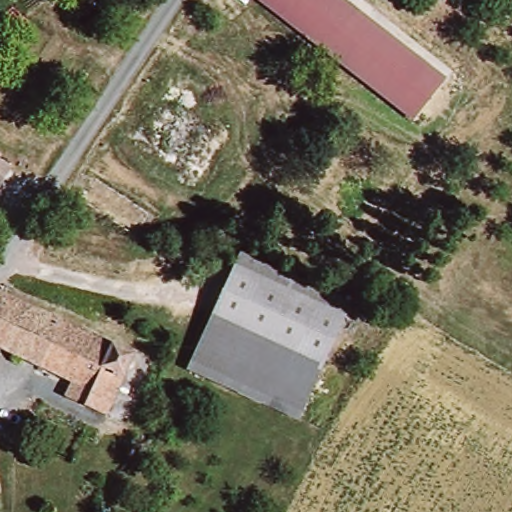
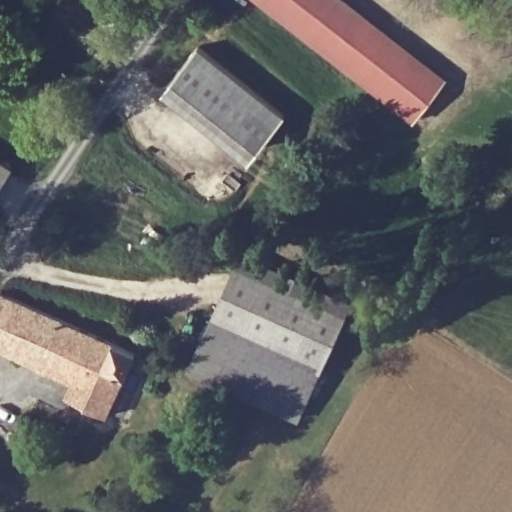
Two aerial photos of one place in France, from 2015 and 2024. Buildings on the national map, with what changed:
unchanged [(443,81),(412,118),(267,0),(343,0),(443,81)]
new [(198,45),(287,115),(250,162),(162,92),(198,45)]
unchanged [(17,165),(0,192),(0,154),(17,165)]
unchanged [(346,305),(297,408),(188,356),(237,253),(346,305)]
unchanged [(75,385),(0,348),(0,293),(136,357),(106,419),(87,410),(67,400),(75,385)]

